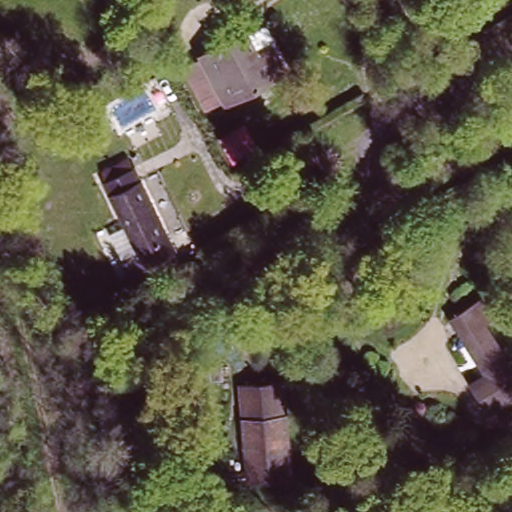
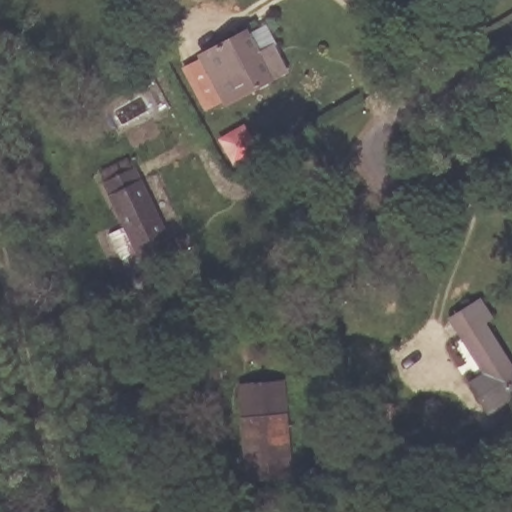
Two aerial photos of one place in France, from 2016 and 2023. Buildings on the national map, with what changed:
unchanged [(274,41),(270,43),(284,67),(227,102),(199,56),(242,29),(244,32),(262,21),(274,41)]
unchanged [(140,243),(100,159),(129,146),(175,242),(147,254),(150,259),(132,267),(125,250),(140,243)]
unchanged [(478,299),(491,319),(482,325),(508,365),(492,375),(478,350),(474,353),(452,316),(478,299)]
unchanged [(241,391),(287,387),(295,478),(250,482),(241,391)]

